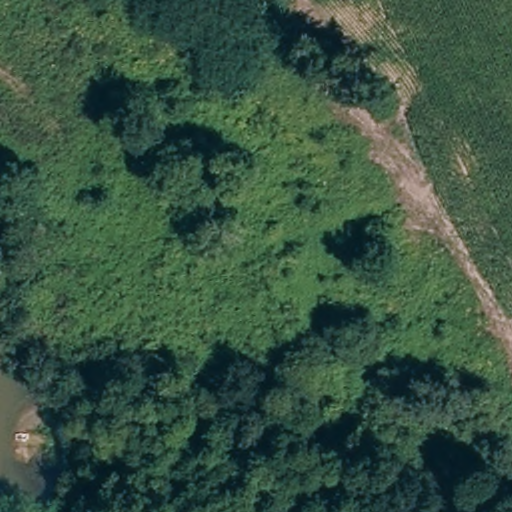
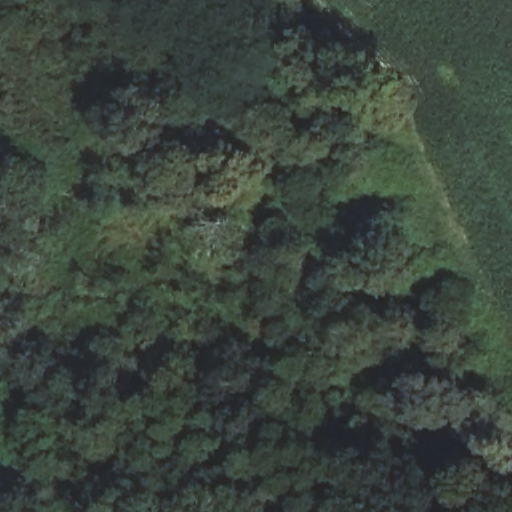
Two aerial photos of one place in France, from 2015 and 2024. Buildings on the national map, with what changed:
[]

